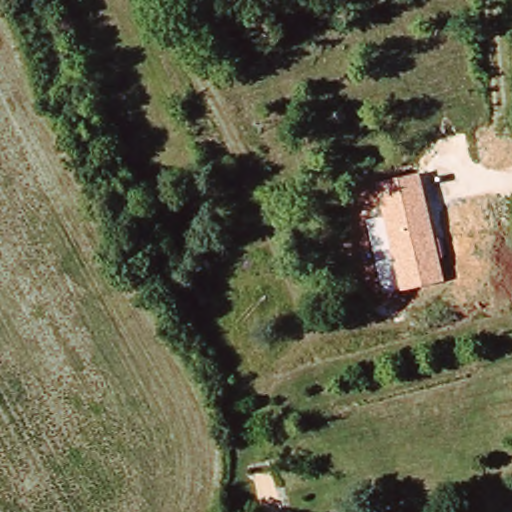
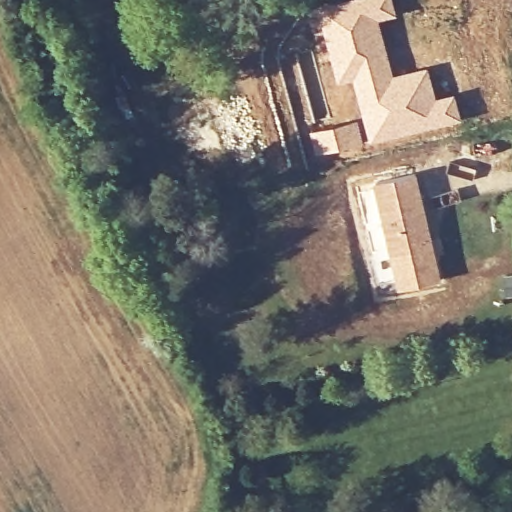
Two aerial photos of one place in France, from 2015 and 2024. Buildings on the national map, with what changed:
new [(393,13),(375,18),(383,48),(317,64),(305,11),(347,0),(390,0),(393,13)]
new [(361,85),(424,68),(433,100),(452,95),(458,118),(375,140),(361,85)]
new [(357,120),(363,142),(314,156),(308,133),(357,120)]
unchanged [(442,279),(398,290),(373,182),(417,171),(442,279)]

